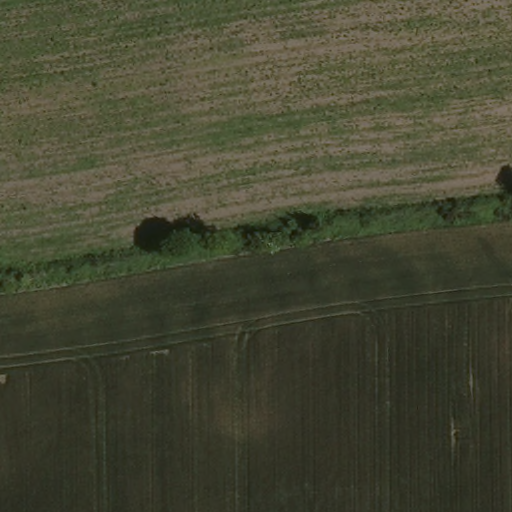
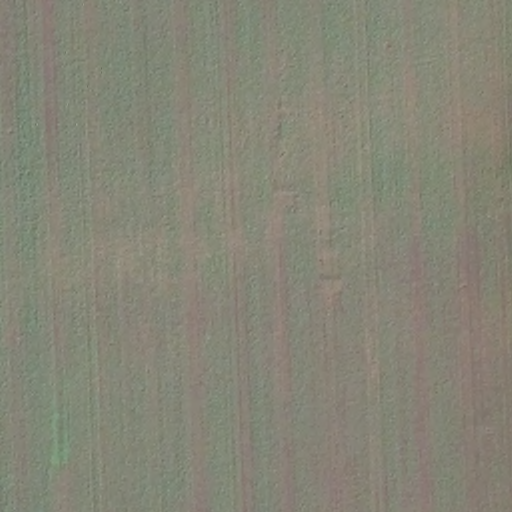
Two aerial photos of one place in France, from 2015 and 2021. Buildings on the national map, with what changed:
[]

